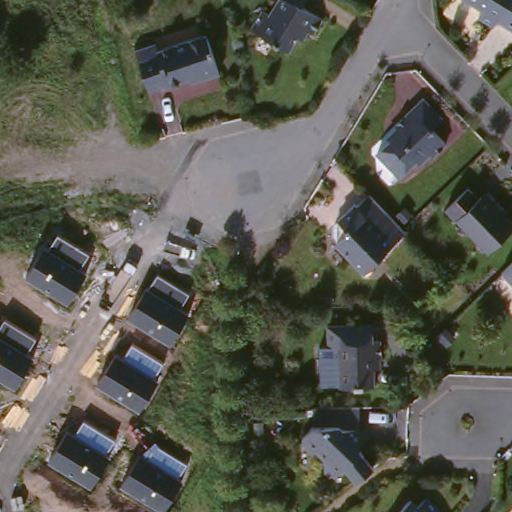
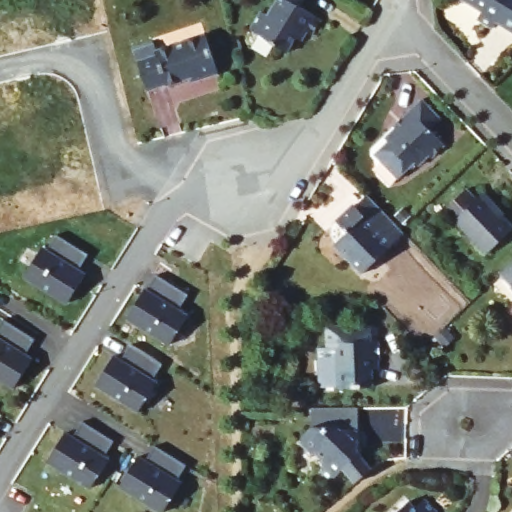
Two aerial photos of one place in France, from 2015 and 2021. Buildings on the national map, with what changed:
unchanged [(306,1),(327,14),(317,30),(312,27),(307,35),(302,32),(293,47),(255,24),(266,5),(273,10),(279,0),(306,0),(306,1)]
unchanged [(512,6),(504,19),(483,5),(478,14),(462,4),(464,0),(512,0),(512,6)]
unchanged [(223,67),(203,75),(202,71),(172,81),(171,79),(152,85),(139,45),(159,38),(161,45),(210,29),(223,67)]
unchanged [(436,152),(434,150),(423,160),(419,157),(403,172),(381,149),(399,131),(404,126),(399,121),(427,94),(446,114),(435,125),(449,140),(436,152)]
unchanged [(482,194),(485,191),(506,212),(508,211),(512,215),(512,229),(492,248),(450,204),(471,184),(482,194)]
unchanged [(405,228),(363,268),(335,239),(345,229),(345,224),(337,215),(354,199),(356,201),(368,190),(402,225),(405,228)]
unchanged [(43,246),(48,249),(57,235),(88,255),(81,268),(87,272),(68,306),(24,277),(43,246)]
unchanged [(512,263),(512,276),(505,269),(512,263)]
unchanged [(147,287),(149,288),(158,273),(189,293),(182,307),(189,311),(170,347),(127,318),(147,287)]
unchanged [(5,319),(35,339),(27,354),(34,358),(15,390),(0,381),(0,326),(5,319)]
unchanged [(377,321),(377,336),(385,336),(386,354),(383,355),(383,364),(379,364),(379,382),(345,383),(344,342),(331,342),(330,322),(377,321)]
unchanged [(115,353),(123,358),(131,345),(162,363),(154,378),(159,382),(139,413),(96,385),(115,353)]
unchanged [(349,463),(339,474),(334,474),(329,469),(329,456),(321,448),(317,448),(307,438),(307,432),(317,422),(317,403),(363,402),(363,447),(380,463),(362,477),(349,463)]
unchanged [(73,437),(83,421),(113,441),(104,455),(110,460),(91,491),(48,464),(66,433),(73,437)]
unchanged [(177,480),(181,484),(165,512),(159,512),(119,488),(150,441),(187,465),(177,480)]
unchanged [(421,502),(430,494),(443,507),(438,512),(439,512),(398,512),(414,496),(421,502)]

